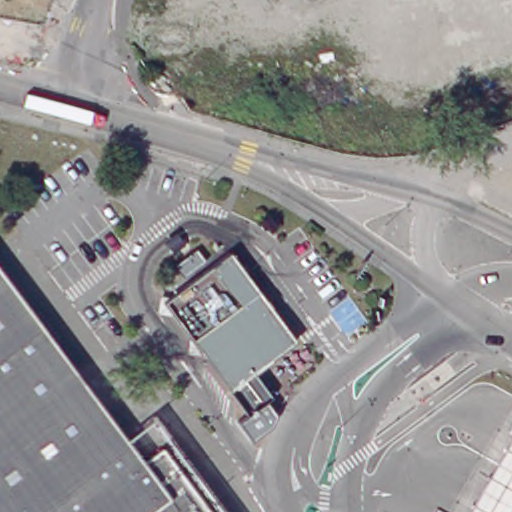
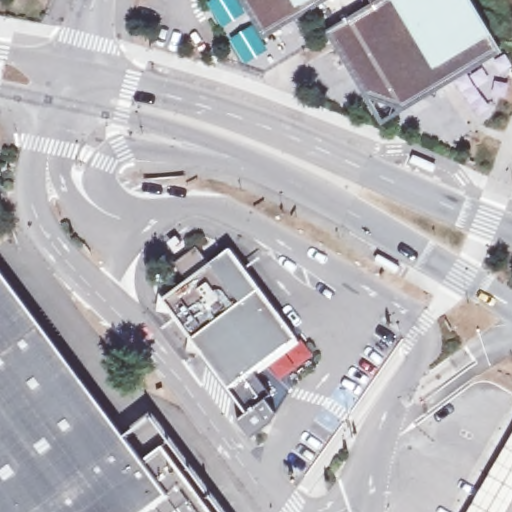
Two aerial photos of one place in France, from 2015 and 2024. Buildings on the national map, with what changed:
new [(263,41),(239,0),(331,0),(263,41)]
new [(379,0),(470,0),(490,36),(502,54),(403,114),(364,100),(325,32),(379,0)]
demolished [(387,71),(487,10),(511,50),(410,110),(387,71)]
demolished [(180,93),(165,102),(152,81),(167,72),(180,93)]
unchanged [(210,259),(187,276),(179,264),(200,247),(210,259)]
unchanged [(250,413),(232,389),(167,300),(233,250),(299,339),(275,357),(275,358),(257,372),(274,395),(250,413)]
unchanged [(146,461),(166,446),(215,512),(0,512),(0,265),(146,461)]
unchanged [(512,507),(509,512),(469,512),(512,437),(512,507)]

